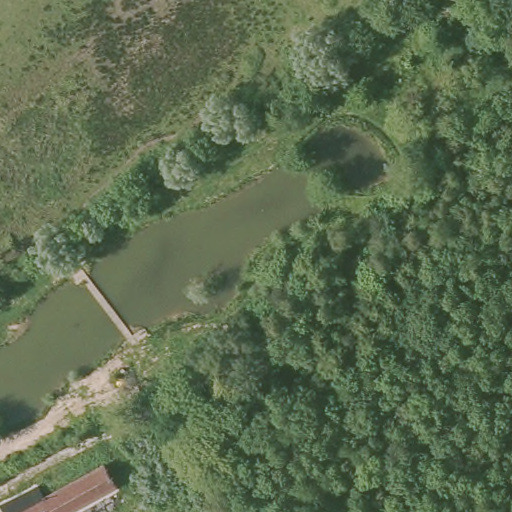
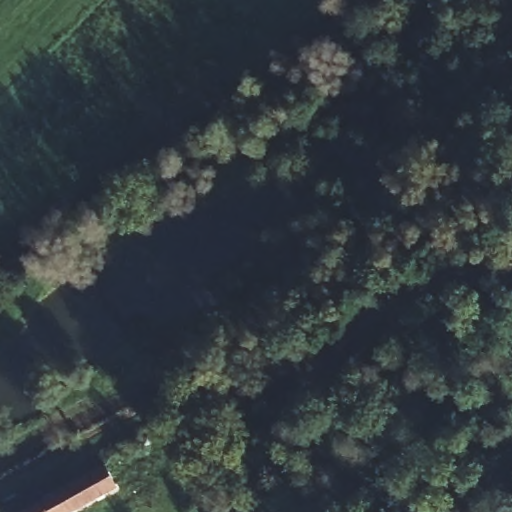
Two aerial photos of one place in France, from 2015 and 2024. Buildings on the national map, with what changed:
unchanged [(107,462),(109,466),(113,473),(117,480),(120,484),(73,512),(7,512),(40,491),(45,498),(107,462)]

